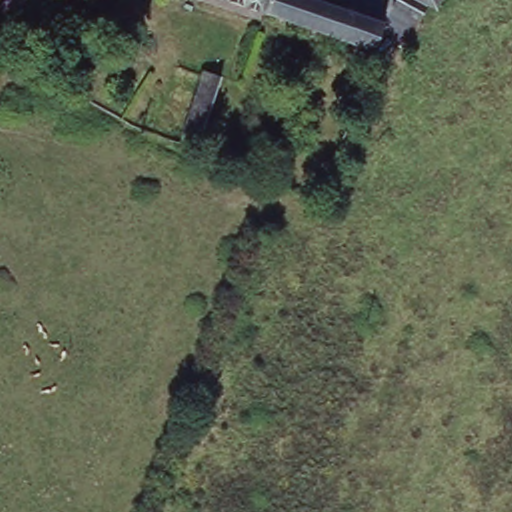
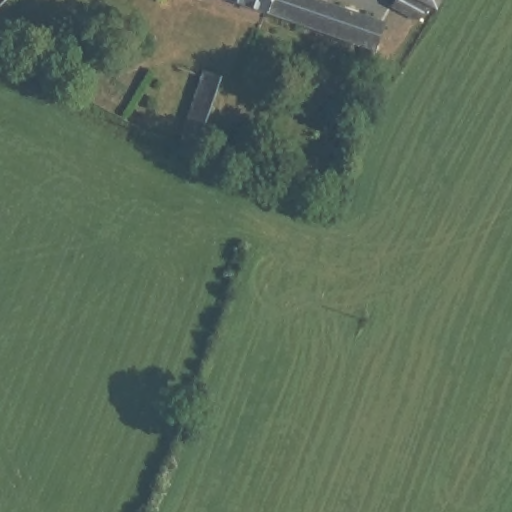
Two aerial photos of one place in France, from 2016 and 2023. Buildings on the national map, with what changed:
unchanged [(390,24),(382,60),(272,24),(198,0),(314,0),(390,24)]
unchanged [(437,10),(426,6),(419,21),(391,6),(395,0),(443,0),(437,10)]
unchanged [(200,94),(183,87),(186,78),(187,76),(203,83),(205,77),(224,84),(197,154),(194,161),(174,151),(200,94)]

